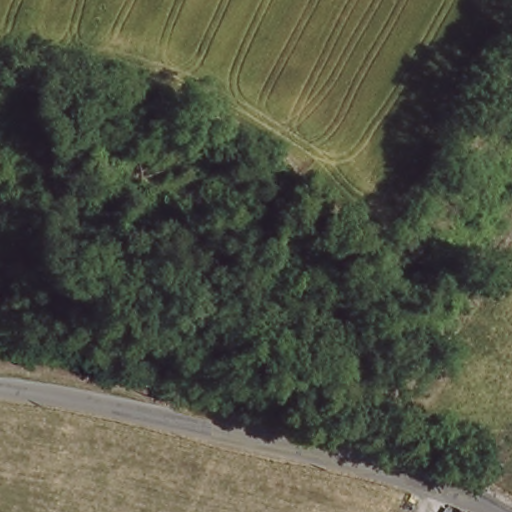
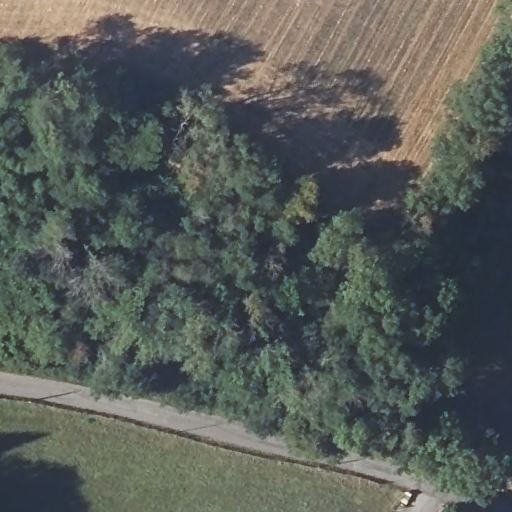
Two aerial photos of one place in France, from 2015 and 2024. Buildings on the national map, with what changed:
[]

